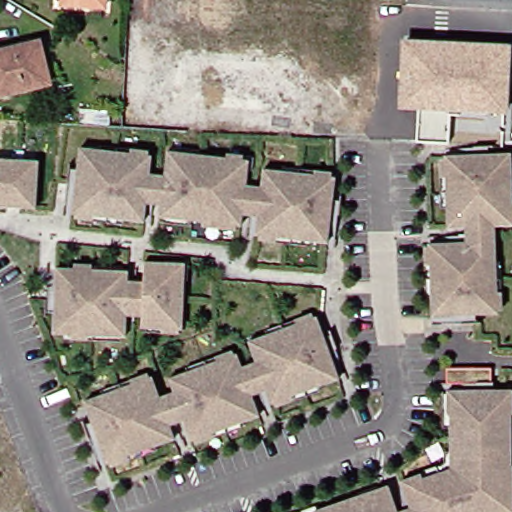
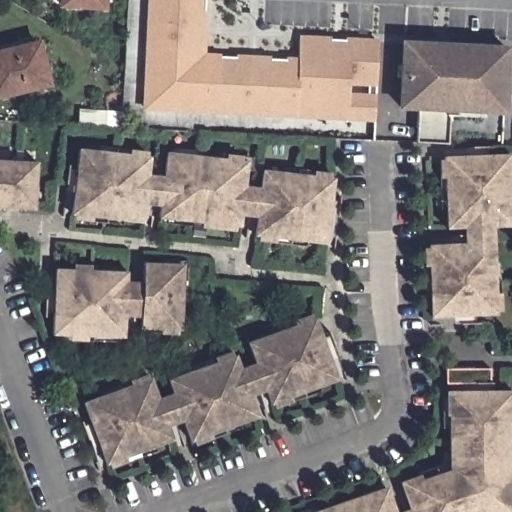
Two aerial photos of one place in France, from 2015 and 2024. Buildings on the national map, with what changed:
unchanged [(111,9),(68,7),(68,0),(111,0),(111,9)]
new [(380,125),(150,113),(156,0),(211,0),(208,61),(304,66),(305,43),(384,47),(380,125)]
unchanged [(404,43),(507,48),(504,112),(450,109),(449,144),(441,144),(417,142),(418,107),(401,106),(404,43)]
unchanged [(0,53),(46,44),(55,90),(0,101),(0,53)]
unchanged [(357,151),(347,150),(348,142),(358,142),(357,151)]
demolished [(373,156),(362,155),(363,146),(374,147),(373,156)]
unchanged [(98,154),(98,159),(126,162),(127,157),(147,159),(141,224),(121,223),(121,218),(92,215),(91,220),(69,218),(76,152),(98,154)]
unchanged [(185,157),(184,159),(222,163),(223,161),(246,163),(239,229),(215,226),(215,224),(178,219),(178,222),(158,220),(164,154),(185,157)]
unchanged [(512,155),(512,227),(456,229),(455,208),(459,208),(459,177),(454,177),(454,157),(512,155)]
unchanged [(33,211),(0,209),(0,162),(35,164),(33,211)]
unchanged [(282,174),(282,179),(312,183),(313,178),(333,181),(325,246),(304,244),(305,239),(274,235),(274,240),(254,237),(262,172),(282,174)]
unchanged [(503,240),(503,253),(504,261),(499,261),(500,292),(504,292),(506,312),(439,315),(439,294),(443,294),(442,263),(437,263),(437,245),(437,243),(503,240)]
unchanged [(163,261),(162,265),(182,266),(180,297),(179,323),(159,322),(159,327),(139,326),(139,306),(142,260),(163,261)]
unchanged [(74,267),(74,271),(105,273),(105,268),(125,269),(124,309),(123,335),(104,334),(102,334),(103,330),(71,328),(71,333),(50,332),(54,266),(74,267)]
unchanged [(264,333),(266,337),(295,327),(294,322),(313,315),(335,377),(316,384),(314,380),(285,391),(287,395),(269,402),(245,340),(264,333)]
unchanged [(184,369),(186,374),(215,363),(214,359),(233,352),(255,414),(236,421),(234,417),(205,427),(207,432),(189,438),(165,376),(184,369)]
unchanged [(489,371),(489,386),(444,387),(444,371),(489,371)]
unchanged [(85,398),(100,392),(101,397),(130,386),(129,382),(149,375),(171,437),(151,444),(149,440),(121,450),(123,454),(104,461),(83,405),(80,399),(85,398)]
unchanged [(417,479),(419,483),(447,473),(447,417),(444,417),(444,394),(509,394),(510,418),(508,418),(507,471),(509,471),(509,480),(484,497),(490,512),(407,512),(398,485),(417,479)]
unchanged [(361,503),(386,494),(392,512),(319,512),(359,498),(361,503)]

